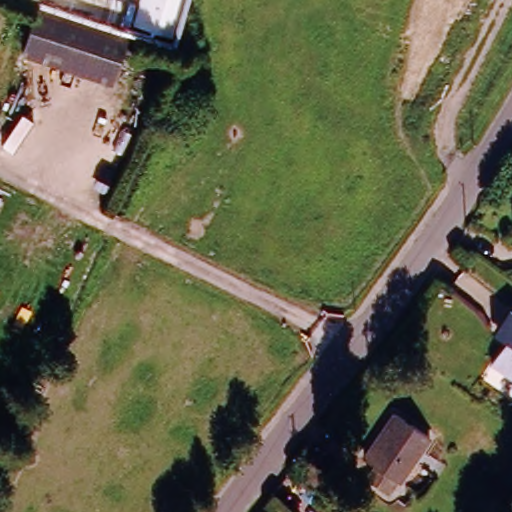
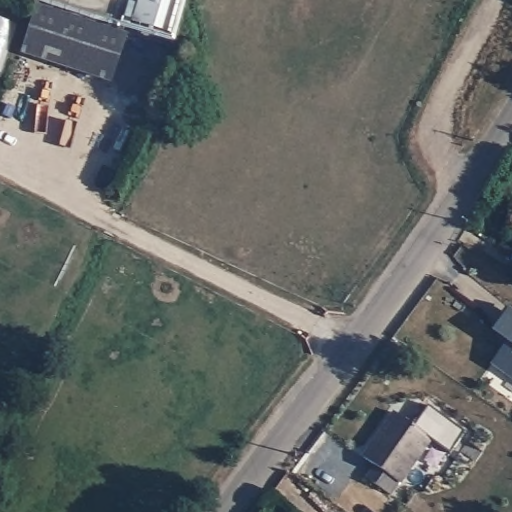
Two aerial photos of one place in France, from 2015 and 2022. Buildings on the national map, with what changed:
unchanged [(176,27),(140,16),(144,0),(184,0),(176,27)]
unchanged [(37,1),(125,31),(110,77),(22,47),(37,1)]
unchanged [(490,365),(506,342),(493,333),(507,311),(512,314),(512,380),(490,365)]
unchanged [(372,494),(381,482),(368,473),(400,430),(433,453),(394,509),(372,494)]

